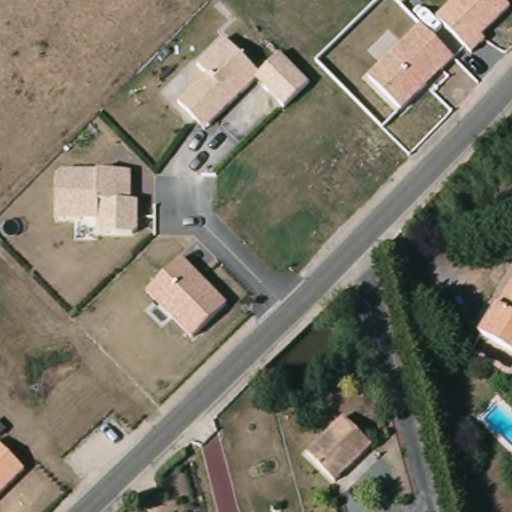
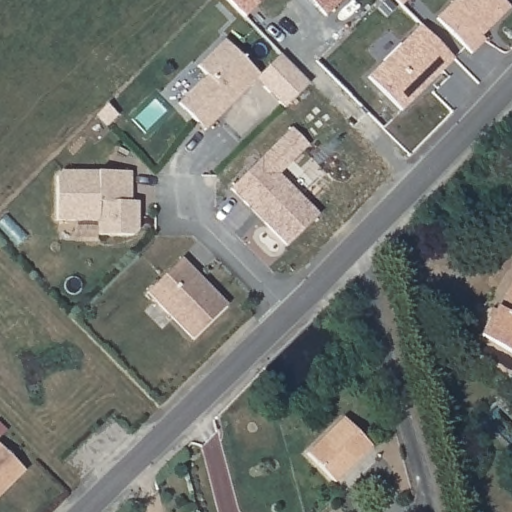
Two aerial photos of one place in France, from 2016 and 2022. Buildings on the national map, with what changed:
new [(245,17),(229,0),(261,0),(245,17)]
new [(326,16),(311,0),(342,0),(326,16)]
unchanged [(435,18),(454,0),(502,0),(510,8),(481,37),(485,41),(470,54),(435,18)]
unchanged [(370,76),(420,25),(453,58),(401,110),(370,76)]
unchanged [(178,104),(205,77),(196,67),(225,40),(260,76),(205,131),(178,104)]
new [(260,76),(280,53),(308,81),(284,107),(255,81),(260,76)]
new [(318,212),(285,247),(229,189),(290,128),(307,145),(280,173),(318,212)]
unchanged [(56,172),(130,171),(131,201),(140,201),(140,236),(97,236),(96,222),(56,221),(56,172)]
unchanged [(184,259),(227,304),(192,339),(146,293),(184,259)]
unchanged [(470,350),(512,281),(512,365),(506,373),(470,350)]
unchanged [(375,443),(342,480),(313,452),(345,416),(375,443)]
unchanged [(25,471),(0,496),(0,444),(25,471)]

